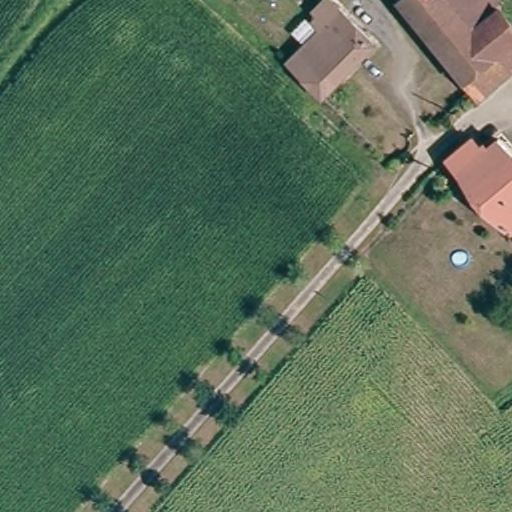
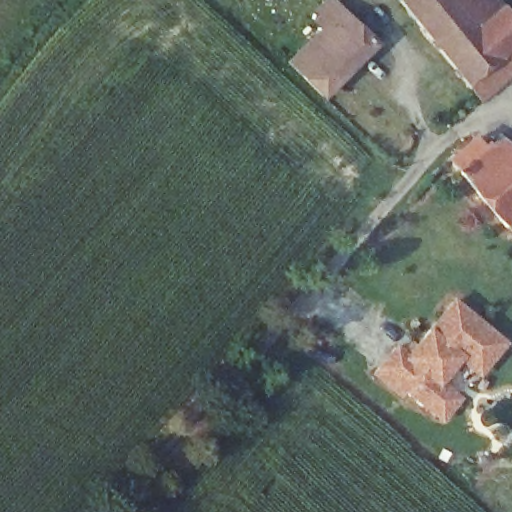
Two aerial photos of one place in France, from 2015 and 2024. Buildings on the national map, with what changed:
unchanged [(339,0),(342,0),(358,16),(375,33),(319,88),(287,55),(339,0)]
unchanged [(404,0),(461,0),(473,20),(501,2),(512,17),(512,69),(473,99),(404,0)]
unchanged [(501,2),(473,20),(461,0),(500,0),(501,2)]
unchanged [(445,154),(456,145),(467,134),(481,148),(497,135),(512,152),(512,224),(510,222),(505,227),(445,154)]
new [(441,421),(432,412),(405,390),(401,395),(377,373),(400,347),(411,356),(457,302),(506,345),(481,373),(463,358),(442,382),(452,390),(461,398),(441,421)]

